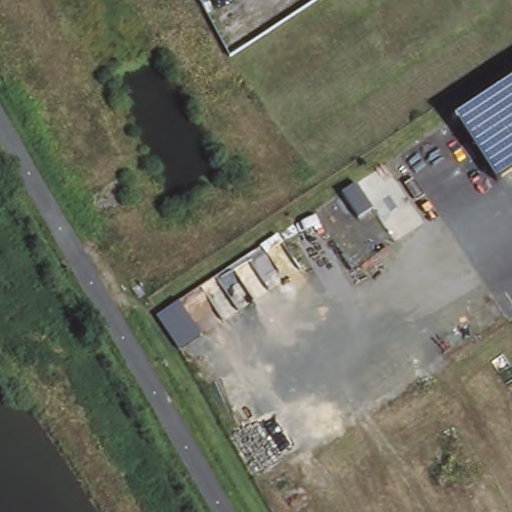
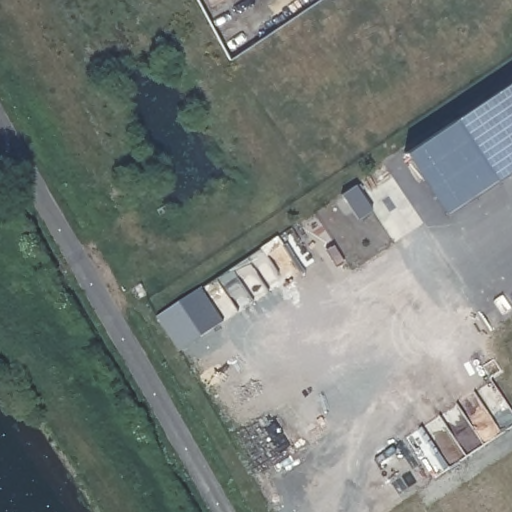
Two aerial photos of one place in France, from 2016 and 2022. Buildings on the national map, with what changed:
unchanged [(456,117),(512,79),(512,170),(498,180),(456,117)]
new [(448,212),(405,152),(456,117),(498,180),(448,212)]
new [(348,189),(365,214),(351,224),(334,199),(348,189)]
new [(172,307),(195,342),(172,357),(149,322),(172,307)]

